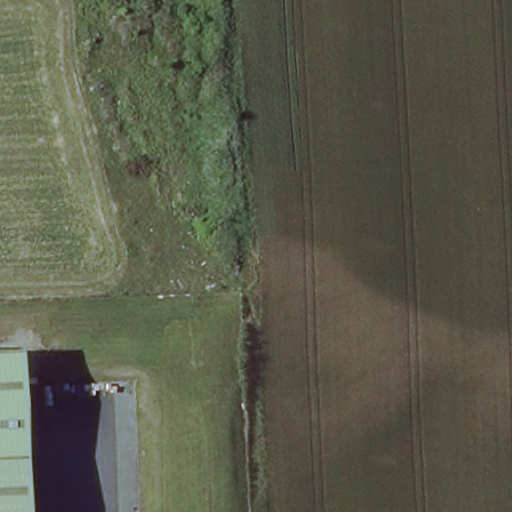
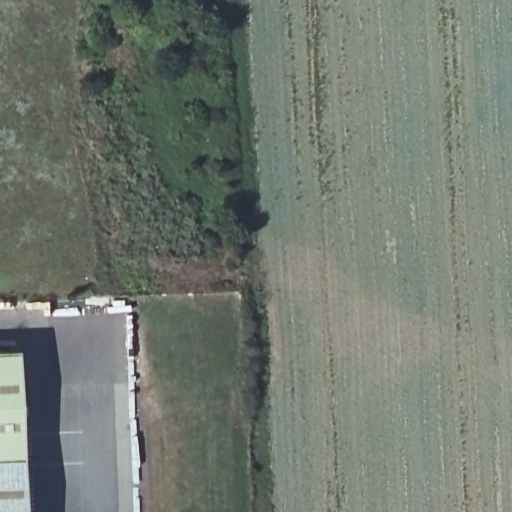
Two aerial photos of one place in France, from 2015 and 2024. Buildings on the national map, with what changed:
unchanged [(19,364),(25,512),(0,512),(0,357),(19,357),(19,364)]

